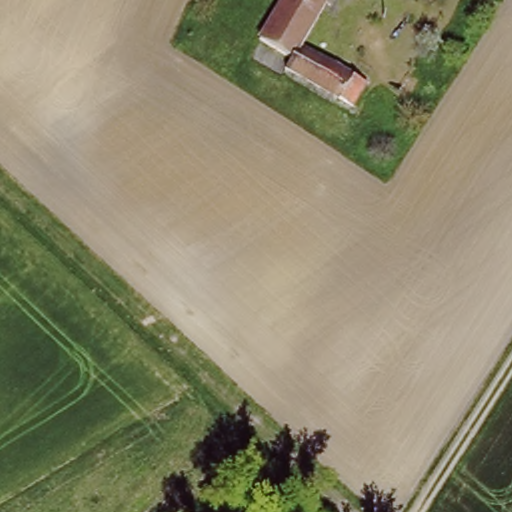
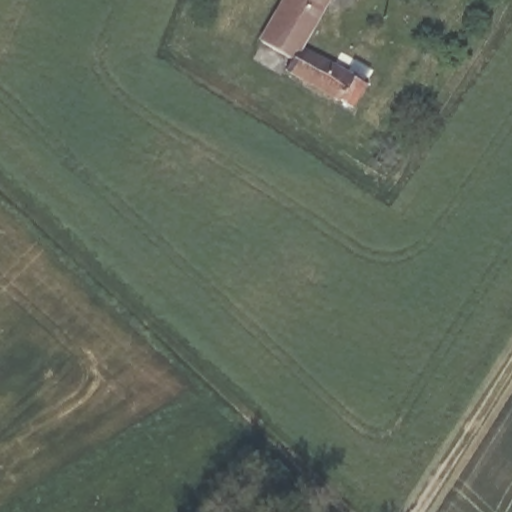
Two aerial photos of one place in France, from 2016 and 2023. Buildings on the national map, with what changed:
unchanged [(285,73),(291,64),(257,44),(282,0),(329,0),(301,47),(364,84),(350,109),(285,73)]

